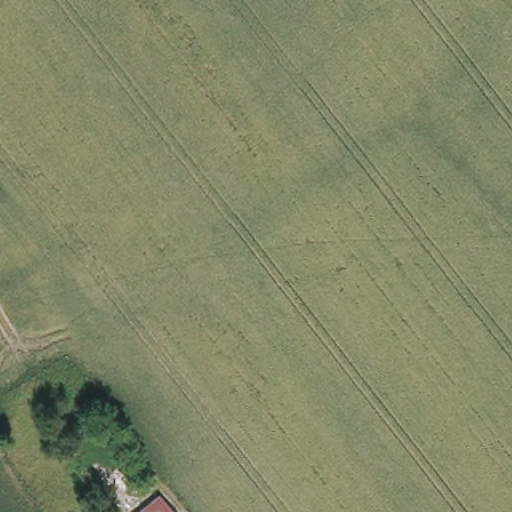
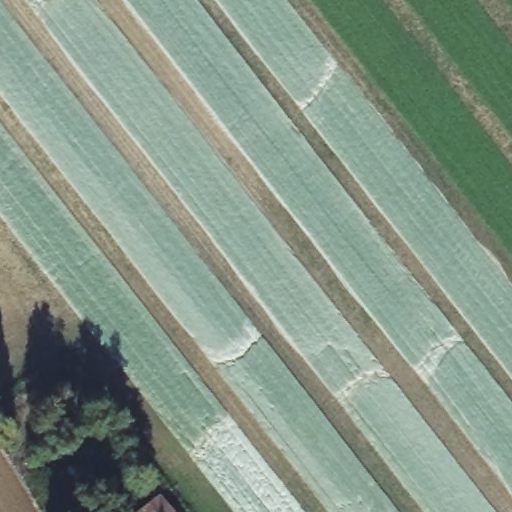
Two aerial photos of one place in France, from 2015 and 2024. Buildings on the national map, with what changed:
unchanged [(169,512),(144,512),(160,500),(169,512)]

